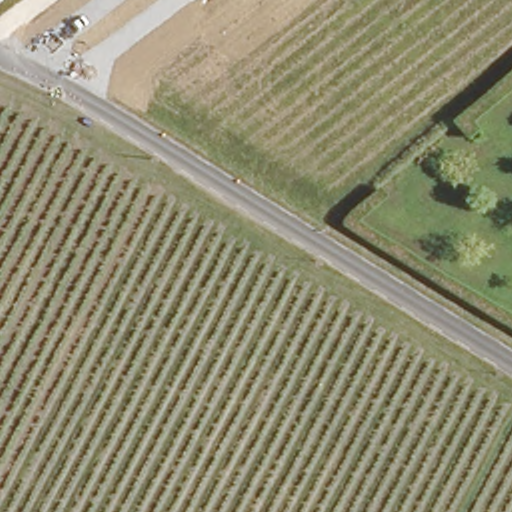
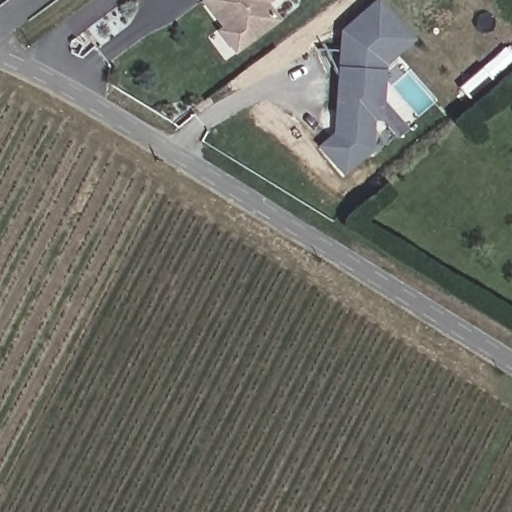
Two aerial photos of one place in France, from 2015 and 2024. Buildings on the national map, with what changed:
new [(265,2),(277,19),(233,52),(217,29),(220,26),(201,0),(267,0),(265,2)]
new [(413,39),(384,64),(384,99),(408,128),(398,137),(383,120),(373,120),(371,152),(343,175),(318,146),(332,133),(339,29),(371,0),(379,0),(413,39)]

